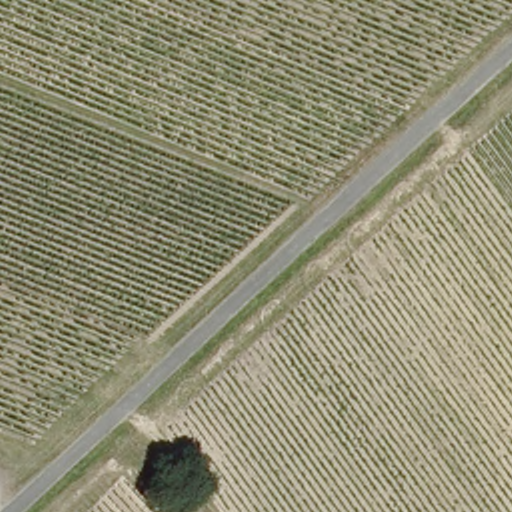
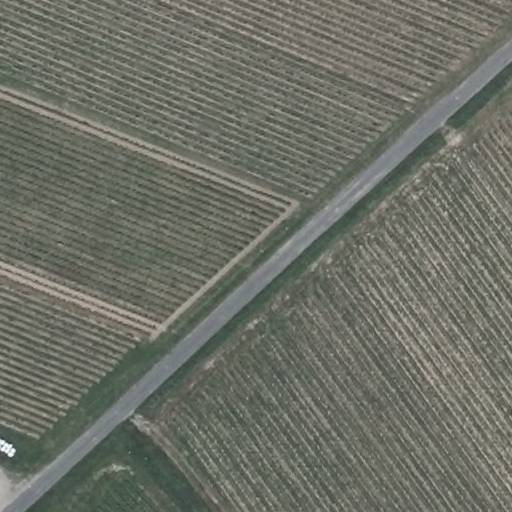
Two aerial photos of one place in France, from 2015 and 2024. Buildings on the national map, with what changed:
[]

